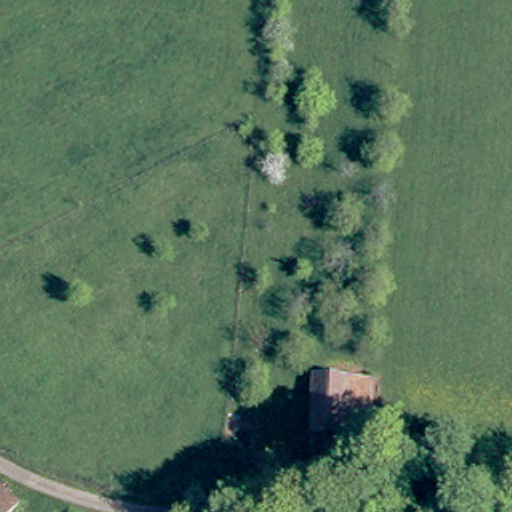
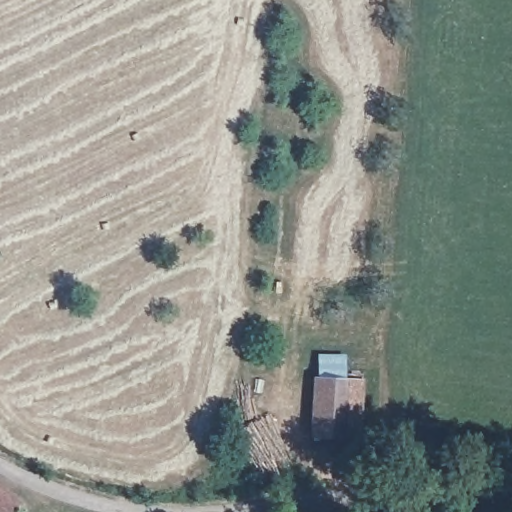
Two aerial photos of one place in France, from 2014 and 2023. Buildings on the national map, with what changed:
unchanged [(382,383),(377,440),(314,441),(318,380),(382,383)]
unchanged [(292,466),(266,483),(249,462),(274,443),(292,466)]
unchanged [(17,508),(14,512),(0,512),(0,494),(17,508)]

